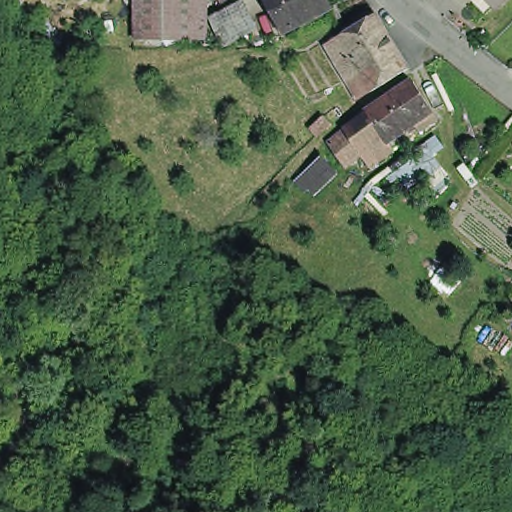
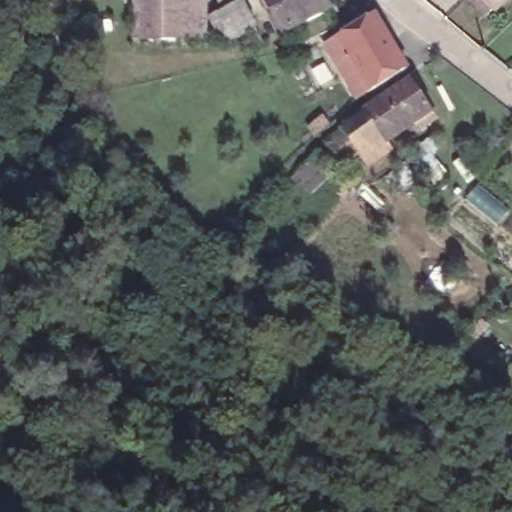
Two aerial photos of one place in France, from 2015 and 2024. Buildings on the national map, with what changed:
unchanged [(138,0),(197,0),(196,39),(137,38),(138,0)]
unchanged [(265,0),(328,0),(332,8),(289,31),(276,6),(270,9),(265,0)]
unchanged [(255,34),(243,40),(228,11),(247,1),(262,30),(265,35),(258,39),(255,34)]
unchanged [(351,99),(319,45),(330,38),(370,14),(390,51),(400,68),(362,91),(351,99)]
unchanged [(430,113),(412,125),(407,118),(380,136),(360,106),(376,95),(405,76),(430,113)]
unchanged [(352,149),(336,161),(321,138),(336,126),(335,124),(360,106),(380,136),(384,141),(360,159),(352,149)]
unchanged [(308,129),(320,117),(327,124),(315,136),(308,129)]
unchanged [(333,174),(309,193),(295,179),(320,156),(333,174)]
unchanged [(462,274),(446,299),(420,289),(440,262),(462,274)]
unchanged [(508,300),(512,294),(512,302),(508,300)]

